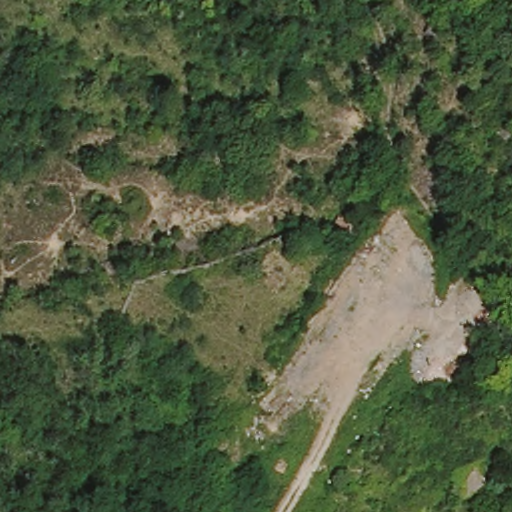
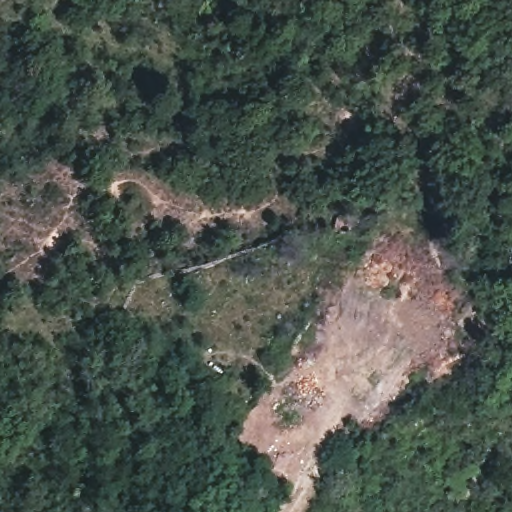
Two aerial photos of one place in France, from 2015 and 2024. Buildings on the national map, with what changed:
unchanged [(350,241),(337,236),(342,225),(355,230),(350,241)]
unchanged [(455,475),(478,463),(487,483),(465,494),(455,475)]
unchanged [(286,473),(277,488),(269,483),(278,468),(286,473)]

